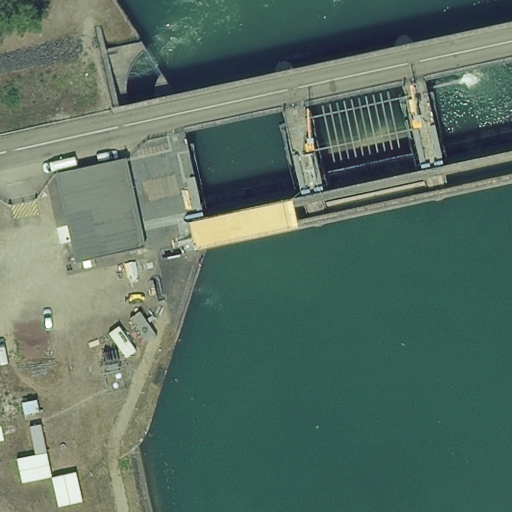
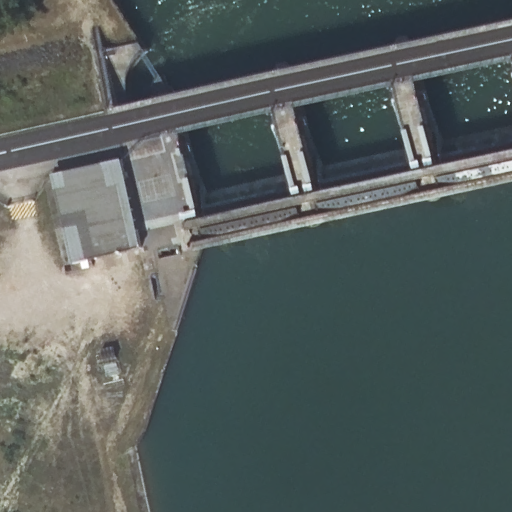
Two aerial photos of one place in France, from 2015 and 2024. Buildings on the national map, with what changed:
unchanged [(120,159),(137,248),(75,260),(58,173),(120,159)]

